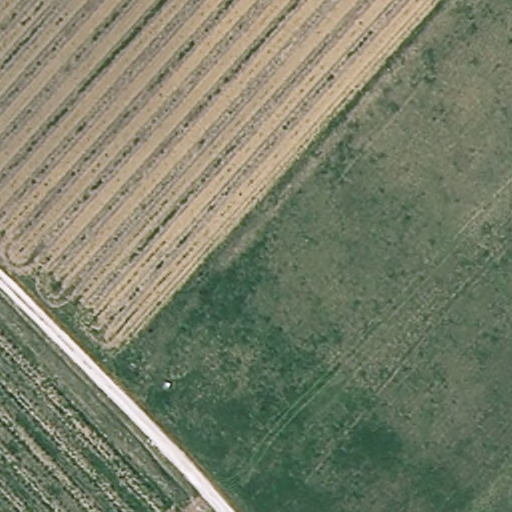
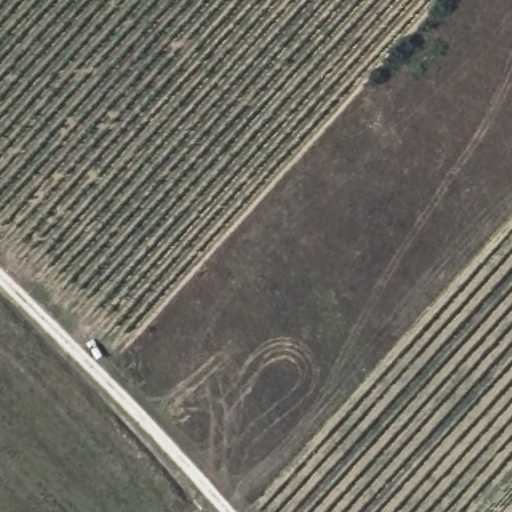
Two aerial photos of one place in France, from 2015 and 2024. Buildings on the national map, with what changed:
[]

